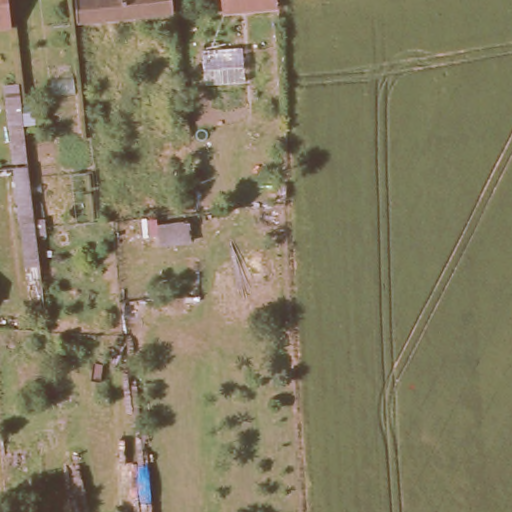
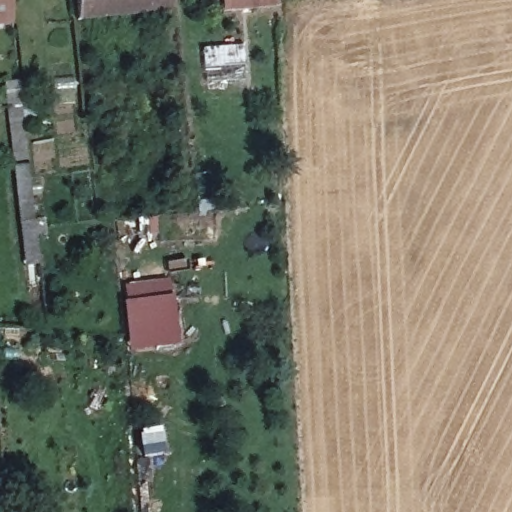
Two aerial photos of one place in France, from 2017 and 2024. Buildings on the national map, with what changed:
unchanged [(11,26),(0,27),(0,0),(9,0),(11,26)]
unchanged [(173,16),(80,21),(77,0),(171,0),(173,16)]
unchanged [(217,14),(217,0),(276,0),(276,6),(276,12),(217,14)]
unchanged [(30,317),(20,219),(18,220),(6,96),(23,95),(40,253),(47,328),(31,328),(0,326),(0,314),(30,317)]
new [(130,354),(121,287),(170,280),(178,348),(130,354)]
new [(138,437),(160,433),(164,456),(142,460),(138,437)]

